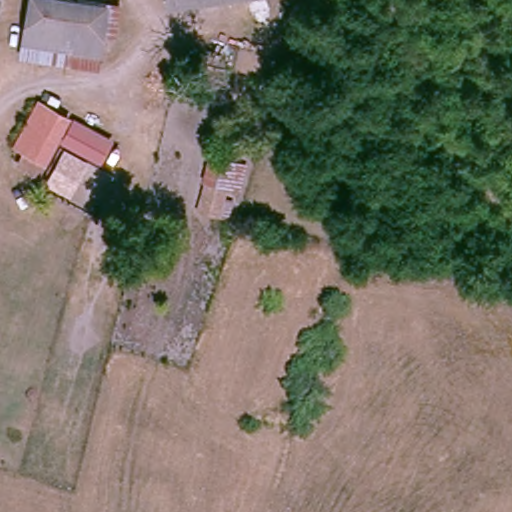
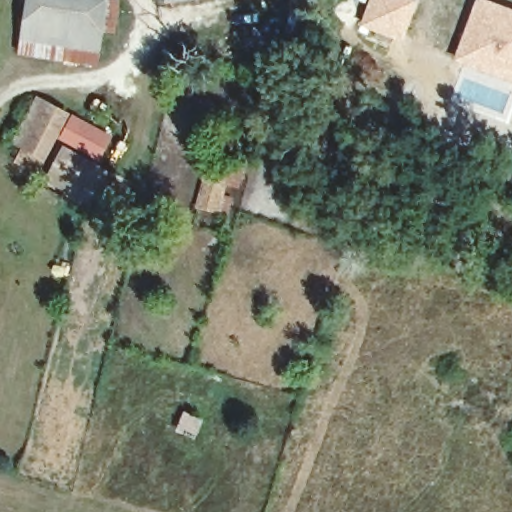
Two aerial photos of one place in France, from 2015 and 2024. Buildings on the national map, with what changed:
unchanged [(170,4),(170,0),(199,0),(170,4)]
new [(368,0),(417,0),(401,42),(359,27),(368,0)]
new [(507,58),(490,52),(484,70),(458,59),(479,1),(505,9),(499,29),(512,34),(512,80),(500,76),(507,58)]
unchanged [(106,14),(100,61),(24,51),(30,3),(106,14)]
unchanged [(91,163),(73,199),(45,186),(64,148),(56,146),(38,180),(14,168),(19,155),(13,149),(37,100),(113,138),(103,167),(91,163)]
unchanged [(243,196),(230,194),(220,219),(197,214),(203,184),(200,182),(207,154),(250,163),(243,196)]

